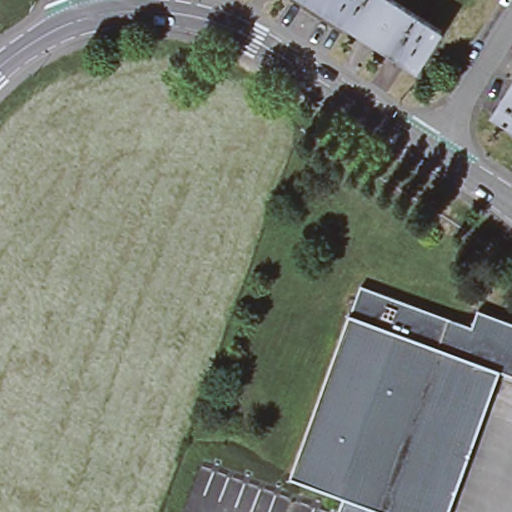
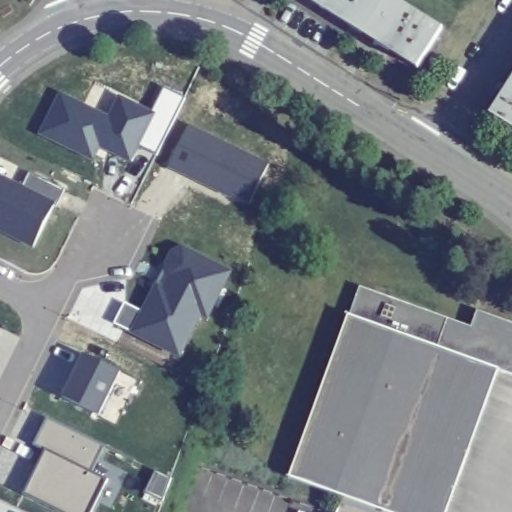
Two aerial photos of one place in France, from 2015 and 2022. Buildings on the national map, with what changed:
unchanged [(322,8),(309,0),(327,0),(322,8)]
unchanged [(360,38),(363,34),(322,8),(327,0),(395,0),(442,30),(417,68),(375,42),(373,46),(360,38)]
unchanged [(509,76),(512,70),(512,78),(509,76)]
unchanged [(490,114),(512,79),(512,127),(490,114)]
new [(59,93),(109,116),(119,96),(152,111),(164,87),(185,97),(157,155),(139,146),(132,161),(99,147),(93,163),(39,134),(59,93)]
new [(268,162),(250,206),(167,166),(187,125),(268,162)]
new [(28,171),(64,189),(55,205),(53,204),(32,246),(0,230),(0,176),(20,186),(28,171)]
new [(230,273),(218,297),(207,318),(200,314),(180,357),(115,325),(124,304),(144,314),(157,287),(163,290),(170,276),(168,271),(167,264),(170,258),(175,253),(183,250),(215,266),(230,273)]
unchanged [(289,477),(347,315),(350,316),(360,287),(471,328),(477,311),(512,324),(512,375),(499,371),(469,452),(447,512),(337,512),(342,497),(289,477)]
new [(84,352),(119,370),(97,415),(63,395),(84,352)]
new [(91,473),(107,481),(92,512),(62,512),(24,494),(38,465),(32,463),(41,447),(35,444),(47,418),(105,446),(91,473)]

